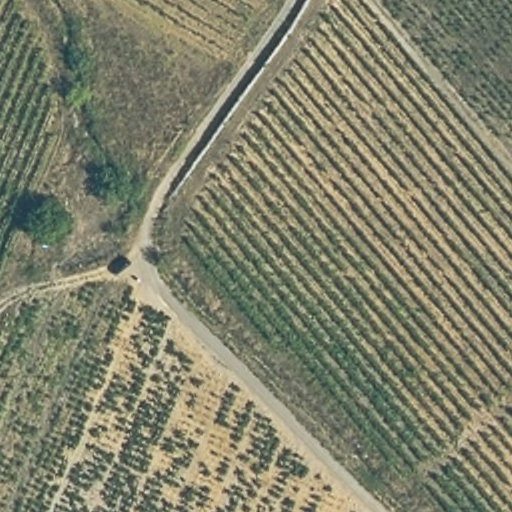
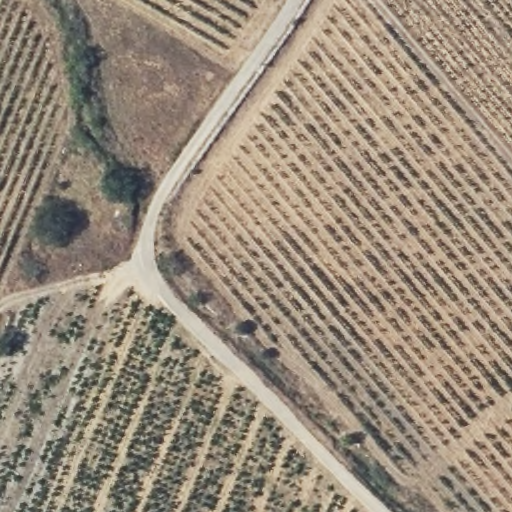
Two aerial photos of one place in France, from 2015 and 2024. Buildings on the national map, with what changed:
[]

